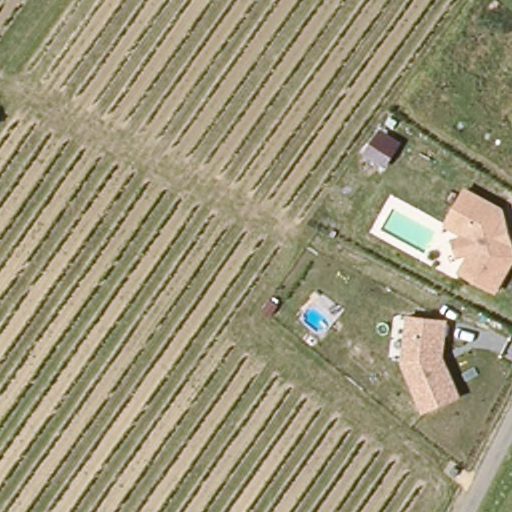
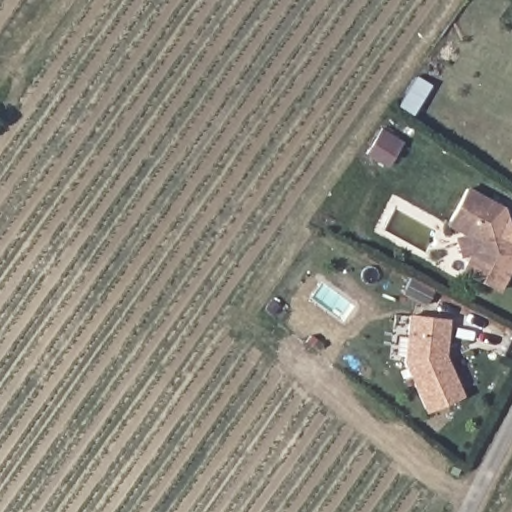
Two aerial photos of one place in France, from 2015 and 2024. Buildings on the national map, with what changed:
unchanged [(447,221),(466,186),(502,205),(505,215),(512,240),(512,261),(497,288),(461,270),(471,250),(458,252),(455,235),(468,233),(447,221)]
unchanged [(446,355),(462,395),(425,412),(402,361),(407,314),(449,319),(446,355)]

